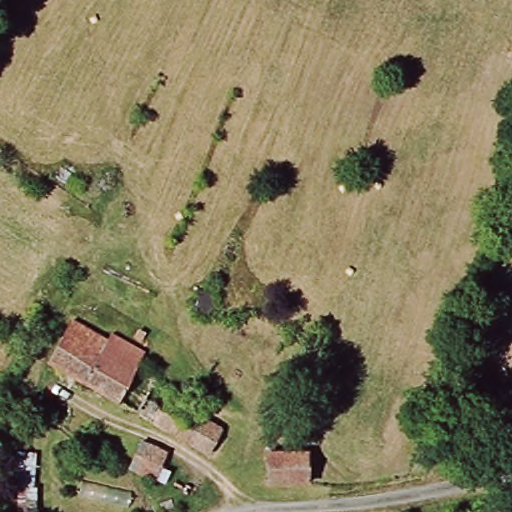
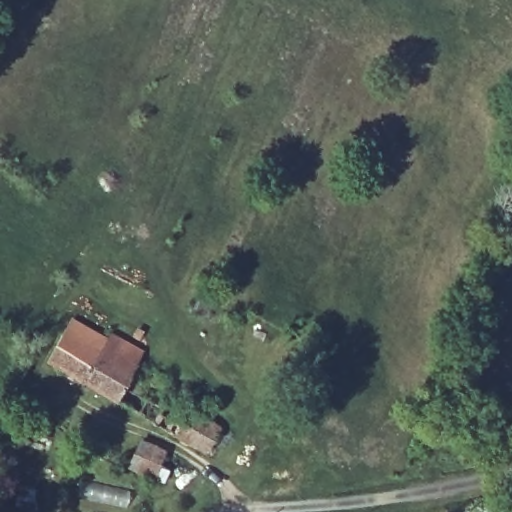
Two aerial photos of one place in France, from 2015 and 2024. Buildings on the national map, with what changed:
unchanged [(157,382),(154,390),(169,400),(171,393),(201,410),(196,421),(220,435),(208,460),(49,370),(71,325),(105,344),(111,340),(142,358),(136,371),(157,382)]
unchanged [(77,440),(85,424),(120,440),(112,455),(77,440)]
unchanged [(150,483),(131,474),(145,445),(165,456),(150,483)]
unchanged [(271,456),(310,455),(311,482),(271,483),(271,456)]

